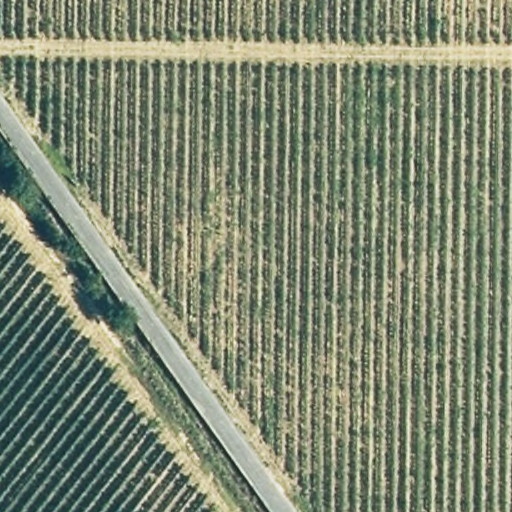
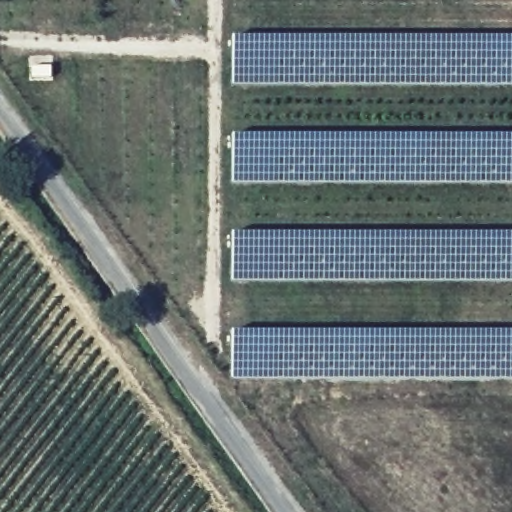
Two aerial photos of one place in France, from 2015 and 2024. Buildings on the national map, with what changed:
new [(512,37),(512,86),(231,86),(232,37),(512,37)]
new [(512,136),(512,184),(231,184),(231,134),(512,136)]
new [(512,234),(512,282),(231,282),(231,234),(512,234)]
new [(512,332),(512,380),(231,380),(231,332),(512,332)]

